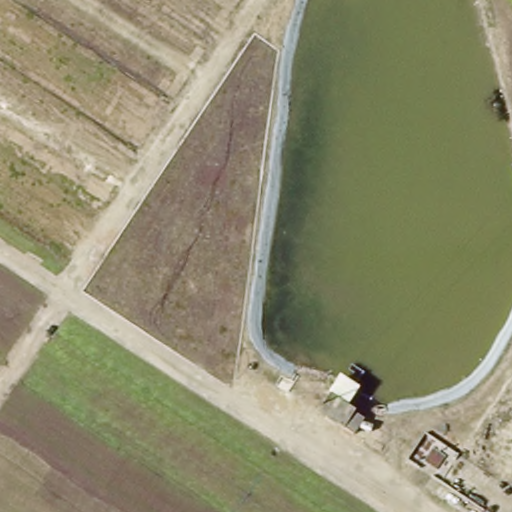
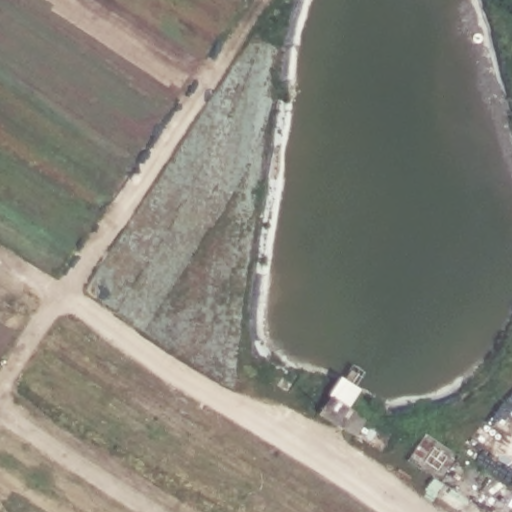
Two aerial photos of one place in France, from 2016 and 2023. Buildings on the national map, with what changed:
unchanged [(354,437),(321,413),(333,398),(364,421),(354,437)]

